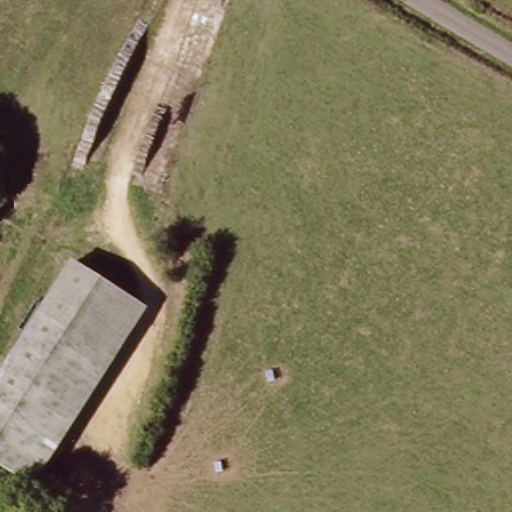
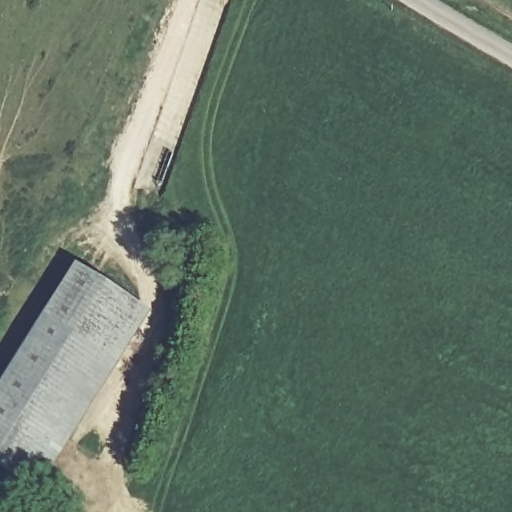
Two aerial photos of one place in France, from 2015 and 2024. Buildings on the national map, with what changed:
unchanged [(149,310),(33,490),(18,481),(0,470),(0,385),(77,265),(133,301),(149,310)]

